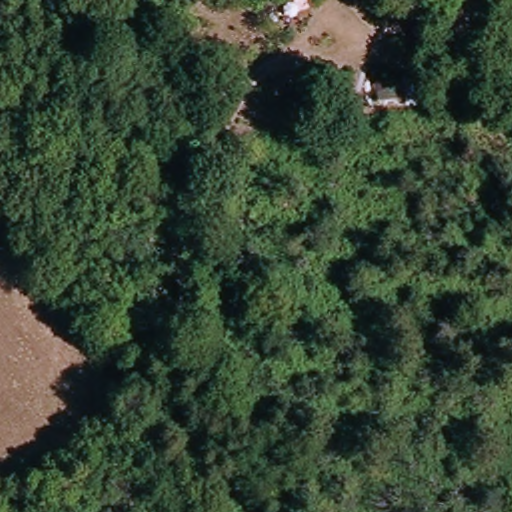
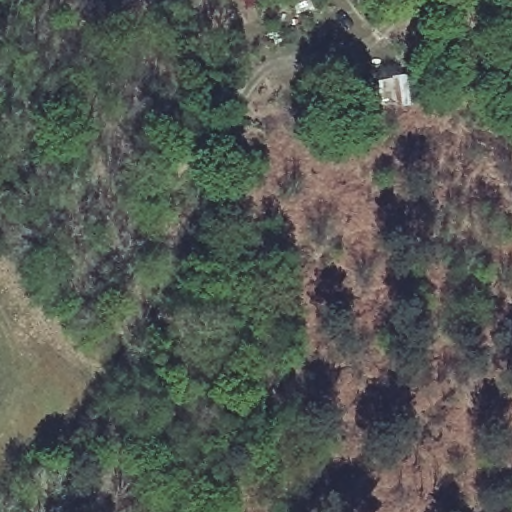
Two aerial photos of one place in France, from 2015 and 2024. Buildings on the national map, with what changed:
unchanged [(281,2),(280,0),(284,0),(281,2)]
unchanged [(294,6),(291,0),(306,0),(294,6)]

